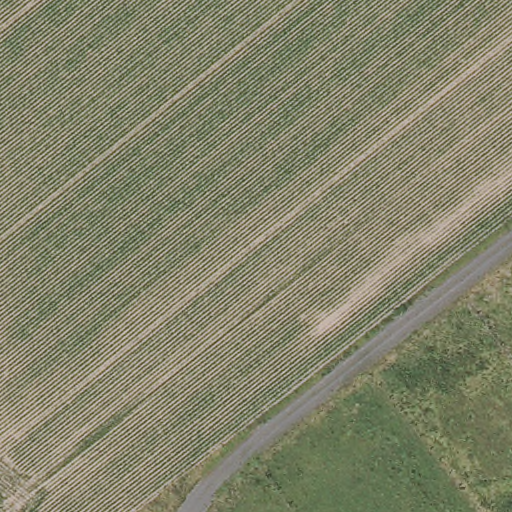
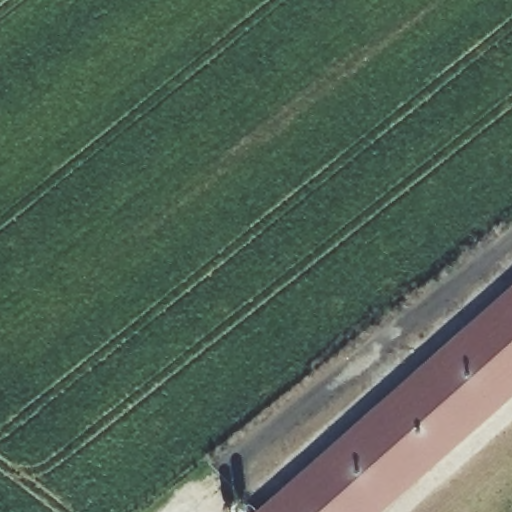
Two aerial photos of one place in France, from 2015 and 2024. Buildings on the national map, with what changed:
new [(512,285),(512,398),(383,512),(255,512),(512,285)]

